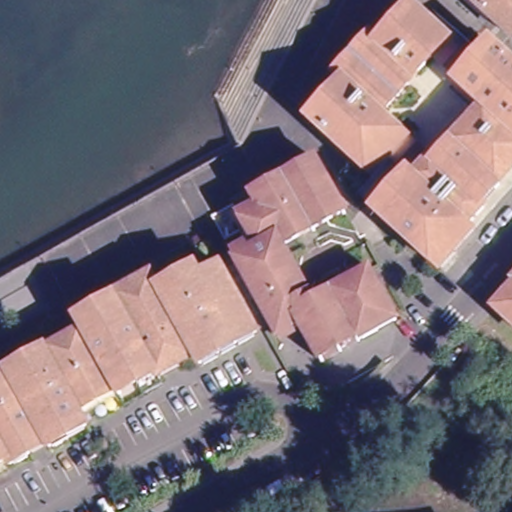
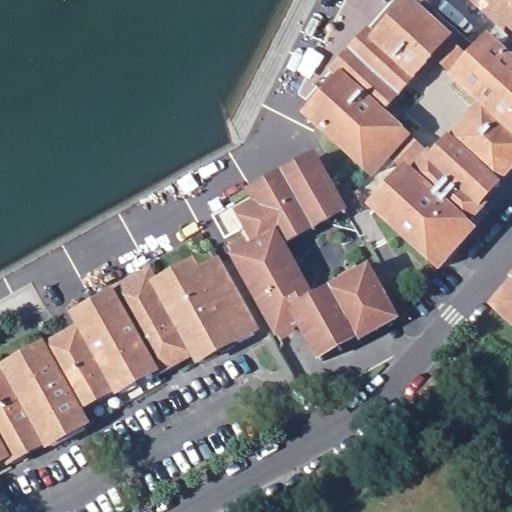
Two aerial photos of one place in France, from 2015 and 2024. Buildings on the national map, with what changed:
unchanged [(512,0),(512,35),(473,0),(512,0)]
unchanged [(345,206),(331,181),(344,161),(303,125),(405,14),(443,47),(460,62),(477,44),(512,76),(512,186),(466,237),(433,275),(369,217),(361,211),(358,215),(345,206)]
unchanged [(241,230),(236,220),(253,211),(253,209),(248,202),(311,168),(313,167),(318,175),(342,220),(341,220),(280,252),(311,306),(365,277),(393,326),(318,367),(297,328),(274,341),(232,266),(229,260),(242,252),(246,258),(255,253),(243,232),(241,230)]
unchanged [(38,456),(4,472),(2,468),(0,469),(0,385),(6,382),(42,363),(81,342),(78,336),(74,327),(148,287),(154,297),(192,277),(198,287),(216,277),(220,284),(248,337),(253,347),(199,374),(194,366),(173,377),(153,386),(117,405),(114,399),(77,418),(71,421),(79,436),(38,456)]
unchanged [(512,279),(512,281),(511,281),(512,279)]
unchanged [(512,285),(512,324),(493,306),(512,285)]

